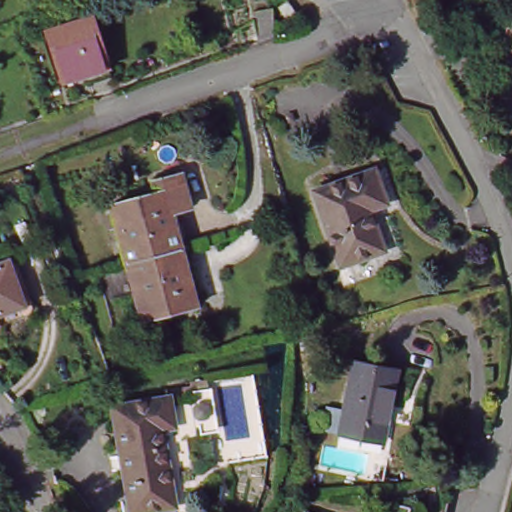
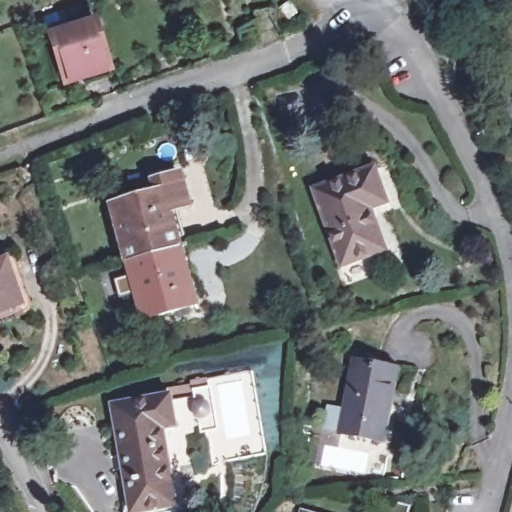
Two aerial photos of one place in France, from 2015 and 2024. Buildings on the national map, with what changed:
unchanged [(287,0),(296,13),(288,19),(279,7),(279,6),(287,0)]
unchanged [(63,79),(48,29),(91,15),(107,65),(63,79)]
unchanged [(346,262),(320,190),(379,168),(388,190),(393,204),(374,211),(389,249),(346,262)]
unchanged [(156,192),(153,178),(162,175),(170,173),(172,179),(186,175),(193,206),(173,212),(168,213),(178,249),(128,263),(112,204),(156,192)]
unchanged [(178,249),(187,285),(194,283),(200,304),(143,319),(128,263),(178,249)]
unchanged [(28,298),(0,308),(0,259),(13,255),(28,298)]
unchanged [(0,318),(0,308),(3,317),(0,318)]
unchanged [(397,370),(383,441),(340,432),(354,361),(397,370)]
unchanged [(163,428),(175,506),(138,512),(132,512),(113,406),(171,396),(176,426),(163,428)]

